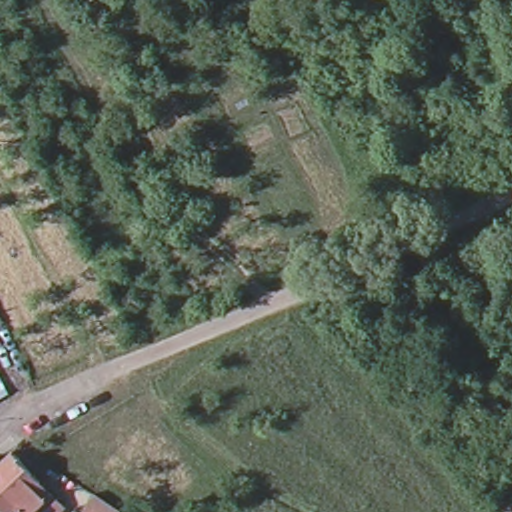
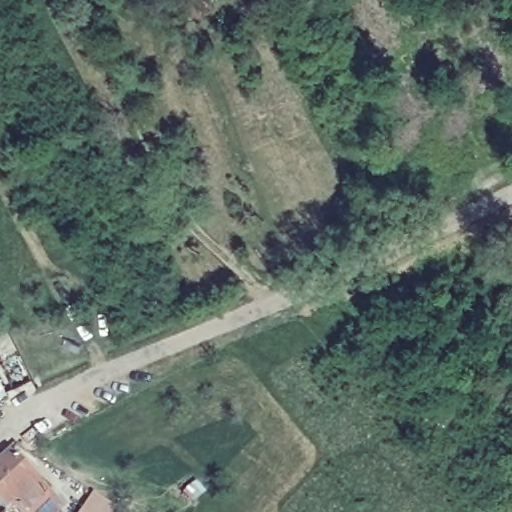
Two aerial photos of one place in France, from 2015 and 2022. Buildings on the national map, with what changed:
unchanged [(0,397),(0,374),(10,392),(0,397)]
unchanged [(17,500),(10,506),(0,495),(0,456),(5,461),(17,450),(57,487),(48,497),(59,507),(54,512),(29,512),(17,500)]
unchanged [(122,512),(79,512),(91,492),(105,502),(122,512)]

